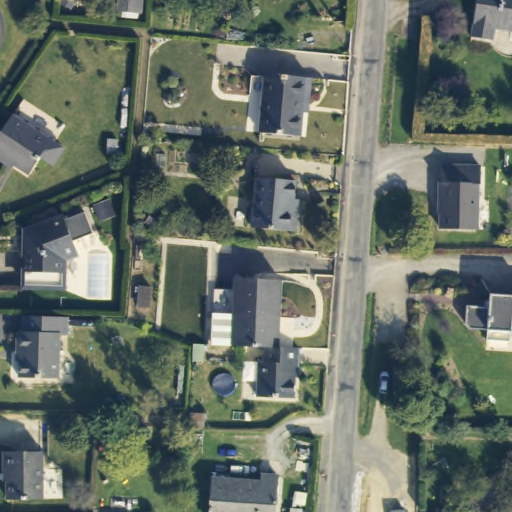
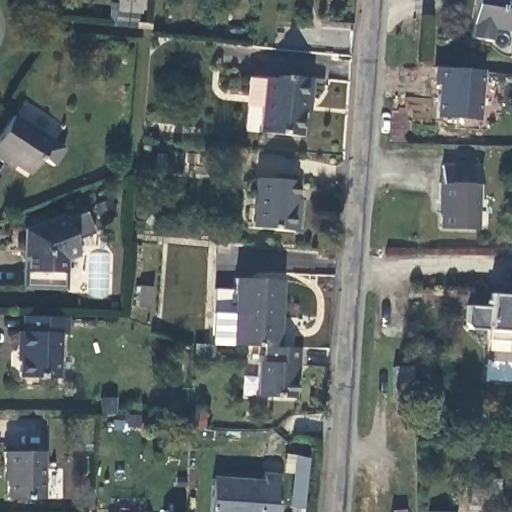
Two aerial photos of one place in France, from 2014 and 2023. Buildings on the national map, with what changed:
unchanged [(126,0),(146,0),(146,2),(126,2),(126,0)]
unchanged [(492,30),(491,39),(468,37),(474,0),(512,0),(512,33),(492,30)]
new [(478,121),(435,116),(437,85),(430,85),(432,67),(483,70),(478,121)]
unchanged [(263,76),(282,77),(283,74),(310,77),(310,101),(301,101),(299,135),(260,132),(263,76)]
unchanged [(61,147),(49,165),(37,156),(27,171),(7,156),(4,161),(0,158),(0,132),(12,114),(61,147)]
unchanged [(447,222),(448,197),(446,197),(447,176),(449,176),(450,158),(488,160),(487,179),(485,179),(483,224),(447,222)]
unchanged [(255,178),(292,180),(291,208),(294,209),(293,230),(251,227),(255,178)]
unchanged [(120,210),(105,215),(99,202),(113,197),(120,210)]
unchanged [(60,216),(80,208),(90,227),(70,235),(75,246),(60,251),(61,280),(23,280),(23,236),(29,236),(28,225),(59,214),(60,216)]
unchanged [(235,312),(237,276),(281,278),(278,345),(264,343),(233,342),(219,342),(220,311),(235,312)]
unchanged [(468,306),(490,306),(490,293),(512,293),(512,340),(489,340),(489,328),(471,328),(468,323),(468,306)]
unchanged [(18,332),(22,332),(22,315),(67,315),(67,332),(61,332),(61,378),(21,377),(21,352),(18,352),(18,332)]
unchanged [(260,357),(263,357),(264,343),(278,345),(301,346),(301,360),(296,360),(295,395),(258,392),(260,357)]
unchanged [(421,362),(422,397),(403,397),(402,362),(421,362)]
unchanged [(5,451),(45,452),(44,499),(9,498),(9,471),(5,471),(5,451)]
unchanged [(262,482),(263,476),(277,476),(275,512),(213,512),(215,480),(262,482)]
unchanged [(477,505),(478,493),(478,477),(508,478),(506,497),(505,507),(477,505)]
unchanged [(398,512),(385,512),(384,505),(397,504),(398,512)]

